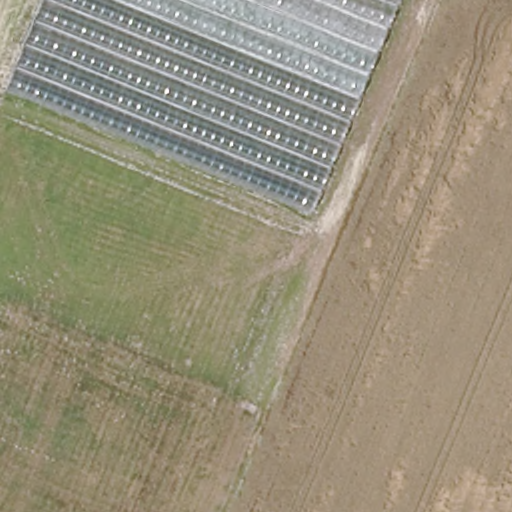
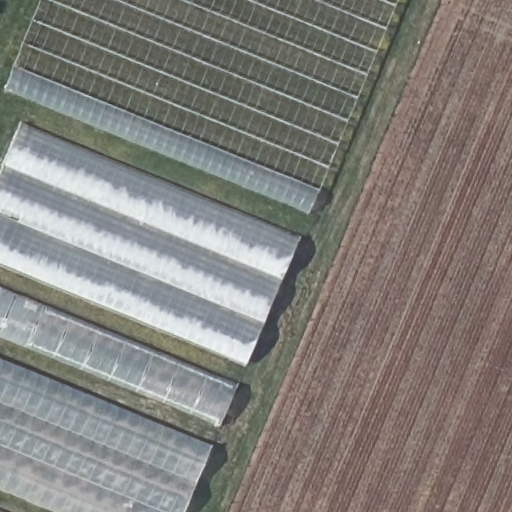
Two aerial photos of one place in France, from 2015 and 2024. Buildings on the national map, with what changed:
unchanged [(40,0),(397,0),(310,213),(4,90),(40,0)]
new [(0,166),(19,121),(298,238),(244,365),(0,262),(0,166)]
new [(217,427),(0,340),(0,288),(237,383),(217,427)]
new [(0,489),(0,357),(211,445),(182,512),(54,512),(0,489)]
new [(0,511),(1,512),(0,512),(0,511)]

